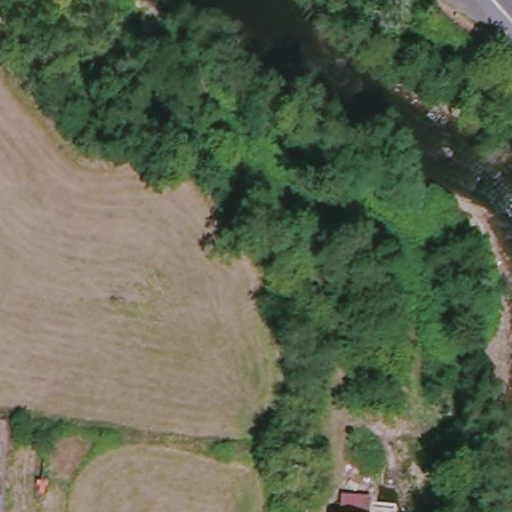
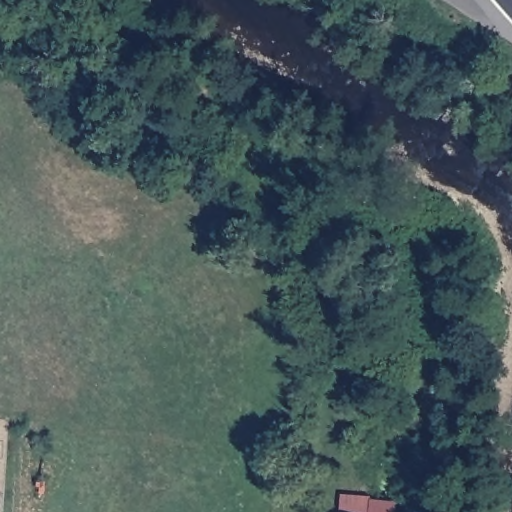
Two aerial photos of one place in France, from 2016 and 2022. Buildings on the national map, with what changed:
unchanged [(0,464),(0,440),(3,462),(0,464)]
unchanged [(0,512),(0,477),(13,512),(0,512)]
unchanged [(373,496),(372,512),(339,512),(340,495),(373,496)]

